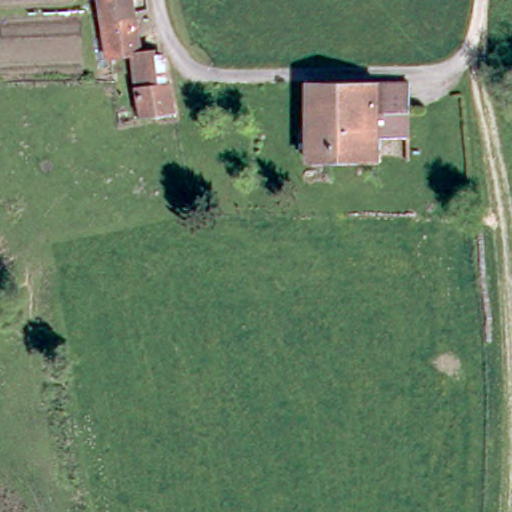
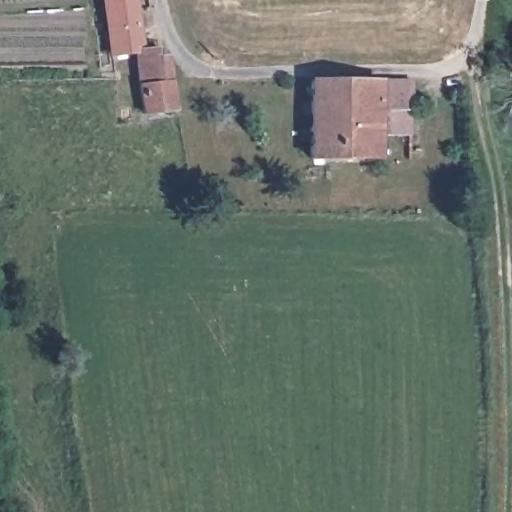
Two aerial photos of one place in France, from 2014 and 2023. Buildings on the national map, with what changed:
unchanged [(106,0),(136,0),(141,48),(113,50),(111,39),(106,0)]
unchanged [(144,79),(141,48),(162,46),(163,62),(166,80),(179,80),(181,108),(138,110),(134,87),(146,86),(144,79)]
unchanged [(384,134),(386,154),(309,155),(306,77),(414,72),(416,105),(417,132),(384,134)]

